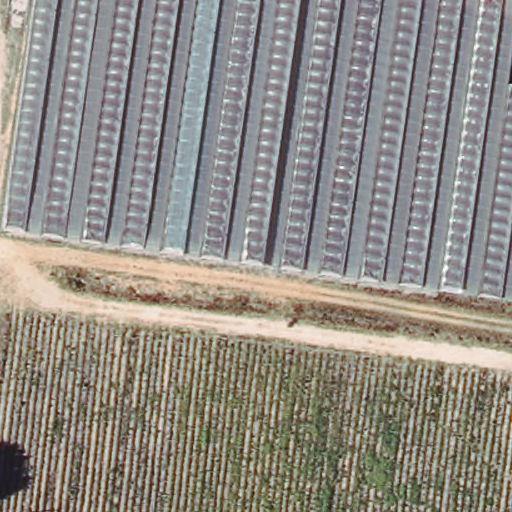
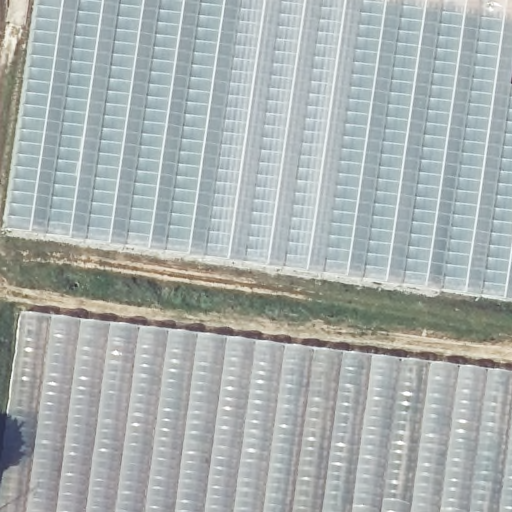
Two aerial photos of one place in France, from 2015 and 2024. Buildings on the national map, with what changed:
unchanged [(33,0),(512,0),(512,71),(510,83),(512,83),(512,299),(1,227),(33,0)]
new [(21,312),(512,372),(512,512),(0,512),(0,471),(9,386),(21,312)]

